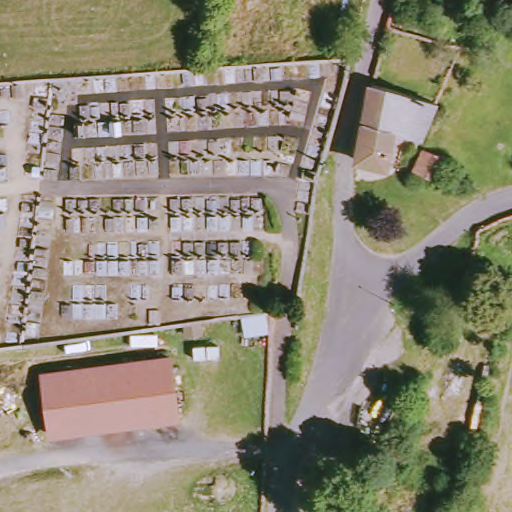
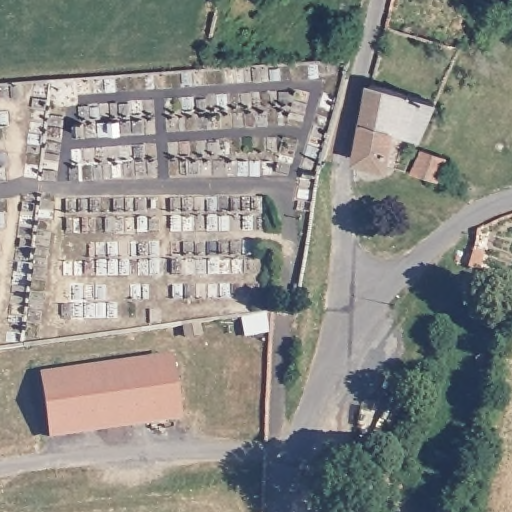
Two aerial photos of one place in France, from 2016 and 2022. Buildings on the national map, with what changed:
unchanged [(396,134),(390,170),(358,162),(373,86),(437,104),(421,142),(396,134)]
unchanged [(447,161),(439,184),(412,173),(422,151),(447,161)]
unchanged [(172,357),(180,418),(53,437),(43,377),(172,357)]

